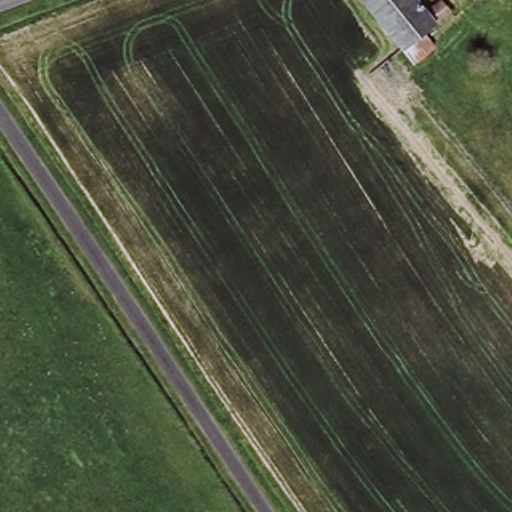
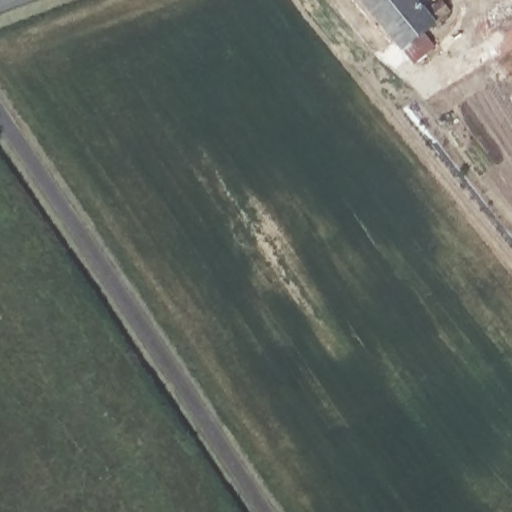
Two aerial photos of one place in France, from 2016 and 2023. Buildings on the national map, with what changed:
unchanged [(356,0),(402,0),(419,17),(430,7),(437,15),(402,48),(356,0)]

